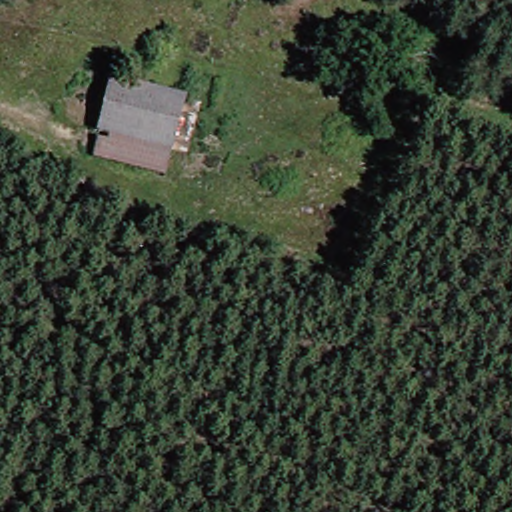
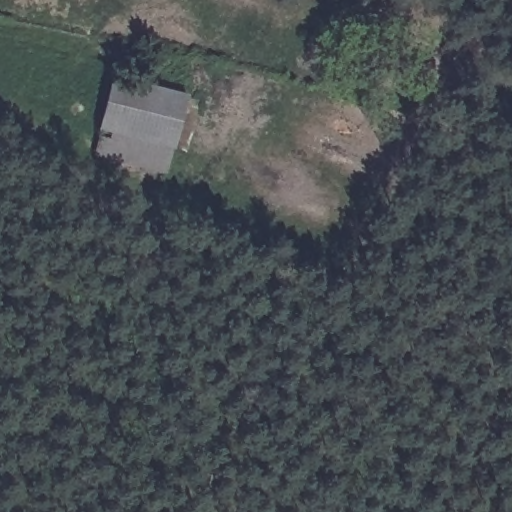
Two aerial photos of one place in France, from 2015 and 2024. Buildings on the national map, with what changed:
unchanged [(92,160),(110,83),(184,100),(164,177),(92,160)]

